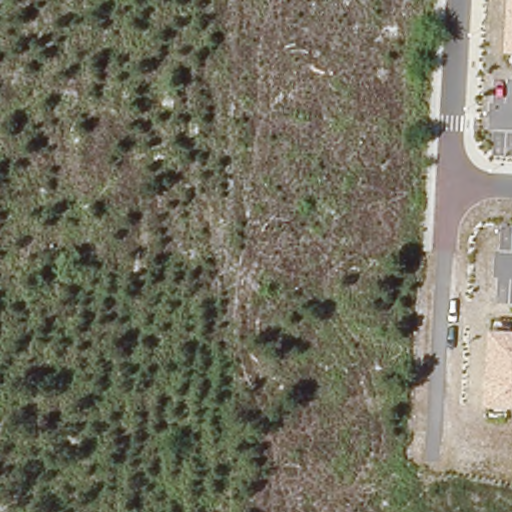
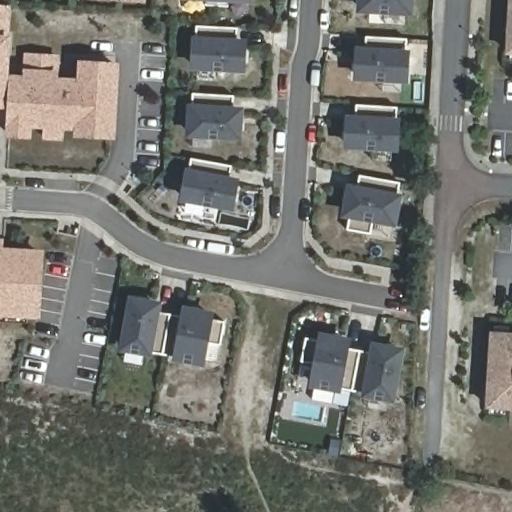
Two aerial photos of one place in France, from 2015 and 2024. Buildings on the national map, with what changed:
new [(113,0),(146,0),(146,2),(113,0)]
new [(190,0),(253,0),(253,4),(190,0)]
new [(361,9),(362,0),(409,0),(409,11),(361,9)]
unchanged [(511,0),(512,0),(512,55),(507,55),(511,0)]
new [(44,126),(29,125),(29,136),(9,135),(9,124),(11,95),(3,95),(2,104),(0,103),(0,5),(8,6),(6,32),(4,79),(26,81),(27,56),(57,57),(55,82),(82,84),(83,63),(115,65),(112,126),(111,136),(79,135),(79,128),(64,126),(63,138),(43,136),(44,126)]
new [(243,44),(242,68),(194,66),(196,26),(238,28),(237,43),(243,44)]
new [(407,39),(405,79),(357,76),(358,51),(365,51),(366,36),(407,39)]
new [(234,96),(233,111),(240,111),(238,136),(190,134),(193,93),(234,96)]
new [(397,107),(395,147),(347,145),(349,119),(355,120),(356,105),(397,107)]
new [(232,166),(229,181),(235,182),(231,206),(184,198),(191,158),(232,166)]
new [(357,190),(360,175),(400,183),(393,222),(374,219),(371,234),(347,230),(350,214),(346,213),(351,189),(357,190)]
new [(40,254),(36,314),(27,314),(0,312),(0,252),(40,254)]
new [(157,305),(156,312),(170,314),(162,355),(124,348),(132,301),(157,305)]
new [(210,315),(209,319),(225,322),(221,345),(205,343),(202,362),(162,355),(170,314),(185,317),(186,310),(210,315)]
unchanged [(489,330),(512,331),(512,410),(485,409),(489,330)]
new [(347,342),(346,348),(359,350),(352,391),(313,384),(317,364),(301,362),(306,338),(321,341),(322,337),(347,342)]
new [(399,351),(391,398),(352,391),(359,350),(373,353),(374,347),(399,351)]

